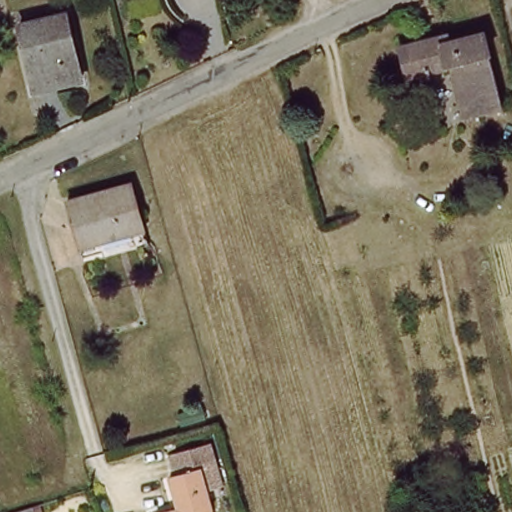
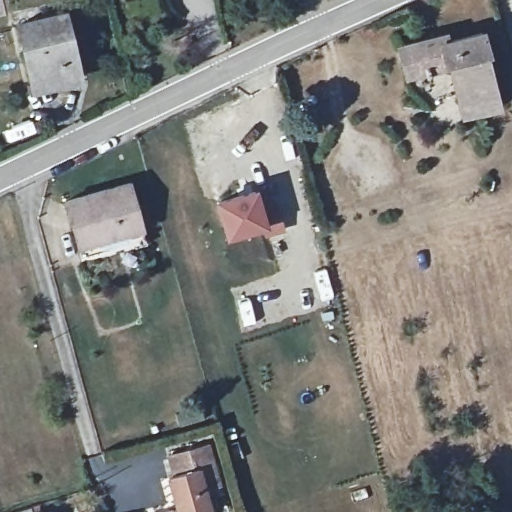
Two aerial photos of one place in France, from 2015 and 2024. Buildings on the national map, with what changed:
unchanged [(76,81),(56,86),(54,79),(30,85),(17,26),(62,16),(76,81)]
unchanged [(498,109),(472,115),(459,65),(407,78),(399,48),(444,35),(448,46),(482,37),(498,109)]
unchanged [(97,244),(79,251),(63,195),(126,177),(144,238),(98,250),(97,244)]
new [(214,200),(258,188),(261,200),(277,202),(286,231),(266,237),(259,231),(226,240),(214,200)]
unchanged [(212,443),(224,487),(208,490),(203,467),(173,475),(167,454),(212,443)]
unchanged [(173,475),(203,467),(208,490),(213,508),(213,512),(167,512),(181,507),(173,475)]
unchanged [(41,509),(41,512),(30,512),(32,511),(41,509)]

